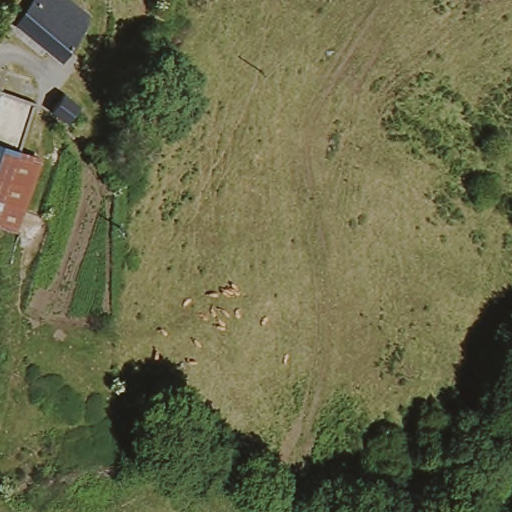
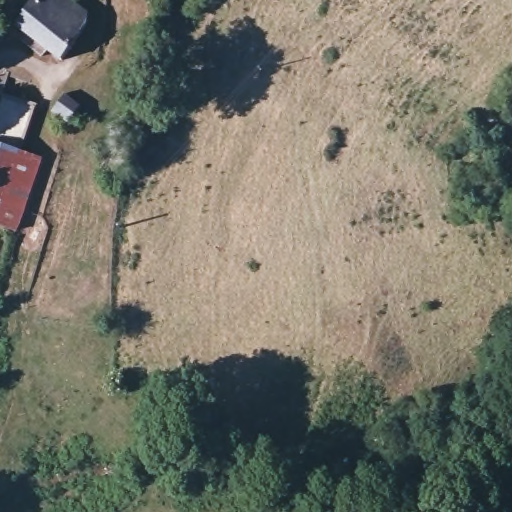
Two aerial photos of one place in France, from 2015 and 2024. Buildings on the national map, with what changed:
unchanged [(90,26),(65,59),(52,49),(48,46),(45,44),(42,41),(38,39),(35,37),(15,22),(32,0),(77,0),(90,10),(90,26)]
unchanged [(17,157),(0,151),(0,76),(0,74),(36,82),(18,148),(17,157)]
unchanged [(66,120),(55,112),(50,108),(62,91),(79,102),(66,120)]
unchanged [(0,151),(17,157),(0,205),(0,151)]

